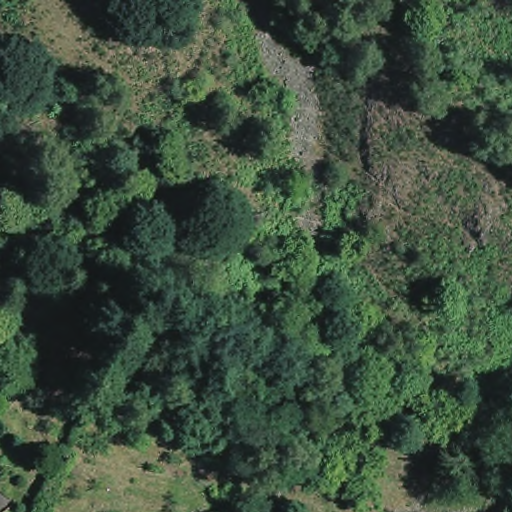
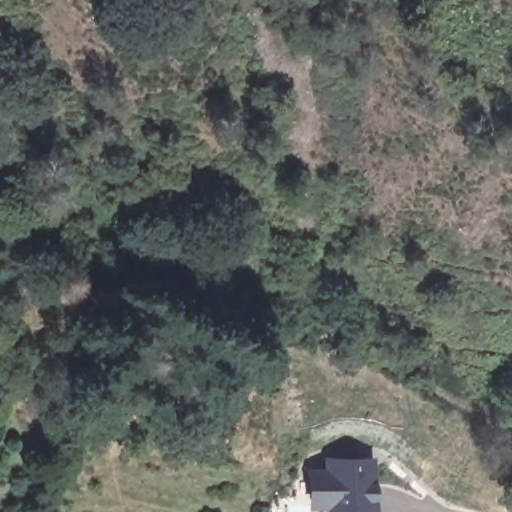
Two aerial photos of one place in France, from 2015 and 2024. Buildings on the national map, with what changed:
new [(318,503),(317,480),(332,478),(332,473),(331,467),(345,466),(374,463),(378,512),(319,512),(318,503)]

